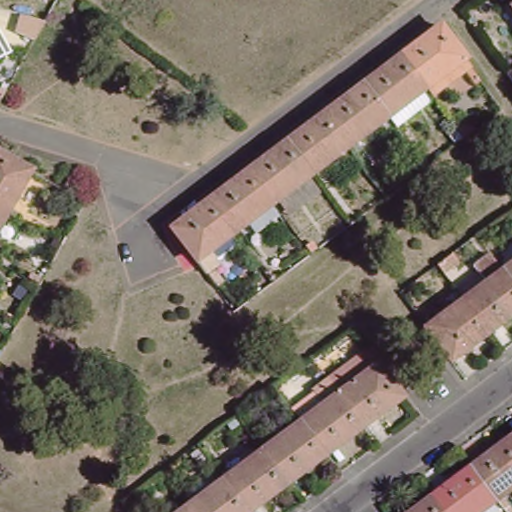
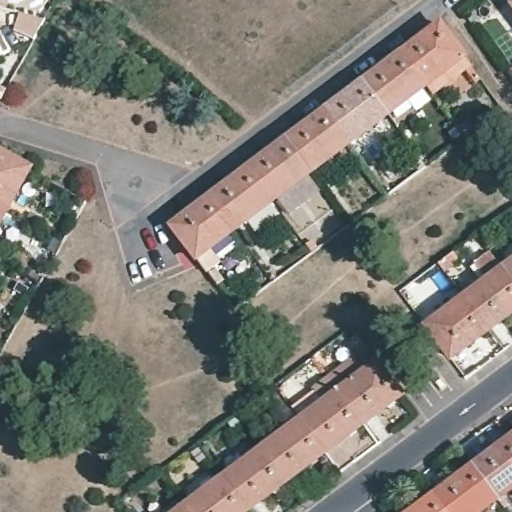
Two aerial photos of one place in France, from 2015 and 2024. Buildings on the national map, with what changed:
unchanged [(512,4),(512,9),(510,6),(512,4)]
unchanged [(422,82),(400,52),(422,35),(422,32),(437,21),(468,62),(429,91),(422,82)]
unchanged [(4,55),(0,58),(0,48),(4,55)]
unchanged [(383,111),(361,81),(385,63),(383,60),(398,49),(400,52),(422,82),(383,111)]
unchanged [(346,139),(323,109),(347,92),(345,89),(359,78),(361,81),(383,111),(346,139)]
unchanged [(307,168),(285,137),(309,120),(307,117),(320,107),(323,109),(346,139),(307,168)]
unchanged [(273,194),(270,196),(247,165),(270,149),(268,146),(283,135),(285,137),(307,168),(305,170),(317,186),(285,209),(273,194)]
unchanged [(36,169),(12,211),(0,204),(0,149),(36,169)]
unchanged [(241,217),(230,226),(207,195),(232,177),(230,174),(245,163),(247,165),(270,196),(265,199),(275,212),(250,230),(241,217)]
unchanged [(215,256),(202,267),(197,260),(170,224),(192,206),(191,203),(205,193),(207,195),(230,226),(225,229),(235,242),(215,256)]
unchanged [(0,232),(0,204),(12,211),(0,232)]
unchanged [(496,253),(509,270),(512,268),(512,313),(492,328),(470,299),(493,282),(480,264),(496,253)]
unchanged [(492,328),(495,332),(481,341),(478,338),(455,356),(432,326),(470,299),(492,328)]
unchanged [(403,391),(390,401),(387,399),(362,417),(330,375),(370,346),(403,391)]
unchanged [(365,420),(350,431),(348,429),(325,446),(302,417),(327,399),(317,385),(330,375),(362,417),(365,420)]
unchanged [(327,449),(312,459),(310,457),(287,475),(265,445),(302,417),(325,446),(327,449)]
unchanged [(482,469),(505,451),(503,448),(512,442),(512,495),(505,501),(482,469)]
unchanged [(288,477),(275,487),(273,485),(247,504),(225,474),(265,445),(287,475),(288,477)]
unchanged [(453,512),(442,499),(465,481),(463,478),(480,467),(482,469),(505,501),(490,512),(453,512)]
unchanged [(243,512),(194,512),(187,502),(225,474),(247,504),(250,507),(243,512)]
unchanged [(453,512),(425,512),(427,510),(426,507),(441,496),(442,499),(453,512)]
unchanged [(194,512),(174,512),(187,502),(194,512)]

